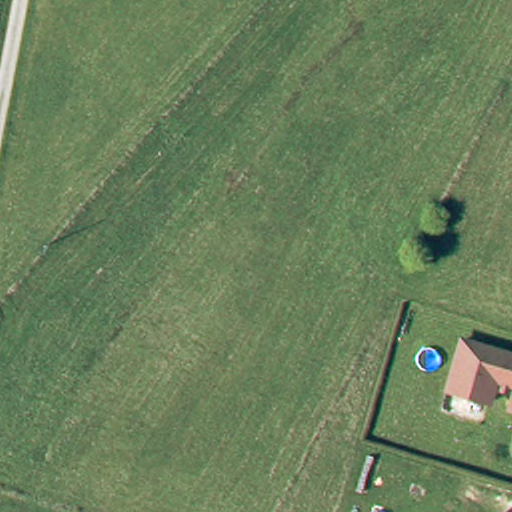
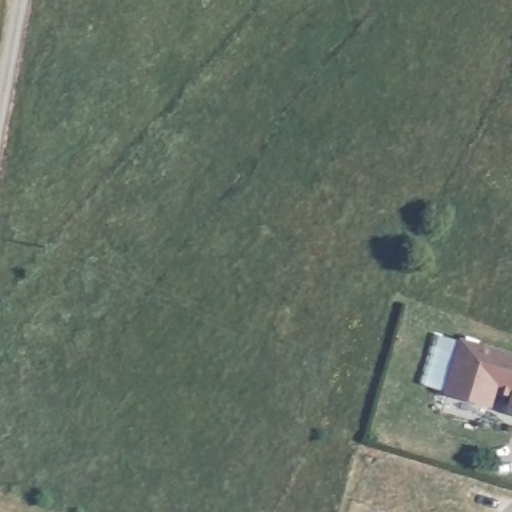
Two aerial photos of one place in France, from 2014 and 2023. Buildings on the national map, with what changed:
unchanged [(497,390),(500,382),(492,380),(486,402),(443,391),(457,341),(512,356),(512,385),(508,384),(506,392),(497,390)]
unchanged [(507,409),(512,393),(512,411),(507,409)]

